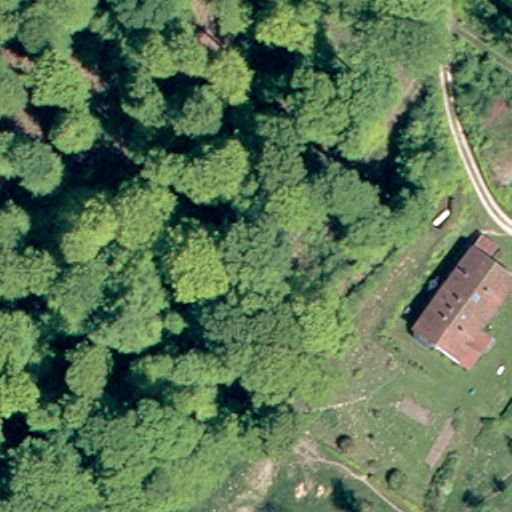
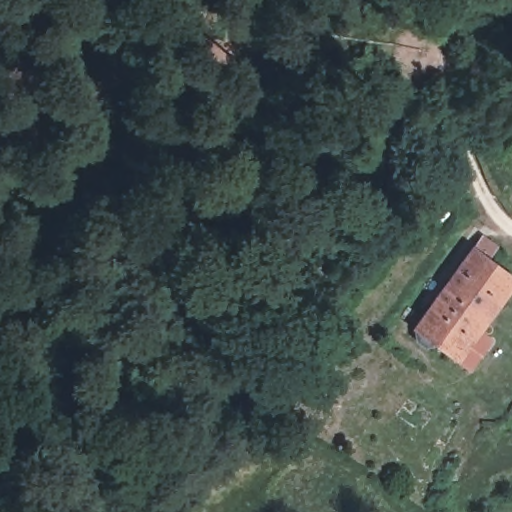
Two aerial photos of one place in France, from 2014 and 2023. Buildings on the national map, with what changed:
unchanged [(493,258),(512,271),(512,290),(482,330),(495,340),(475,369),(439,345),(435,348),(431,349),(427,348),(423,346),(420,342),(419,338),(420,334),(420,332),(418,330),(485,238),(500,249),(493,258)]

